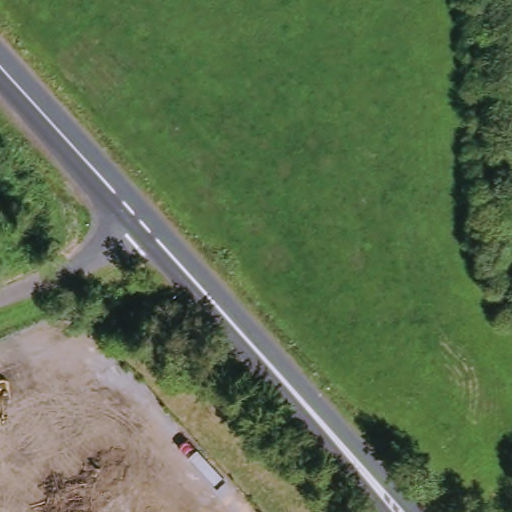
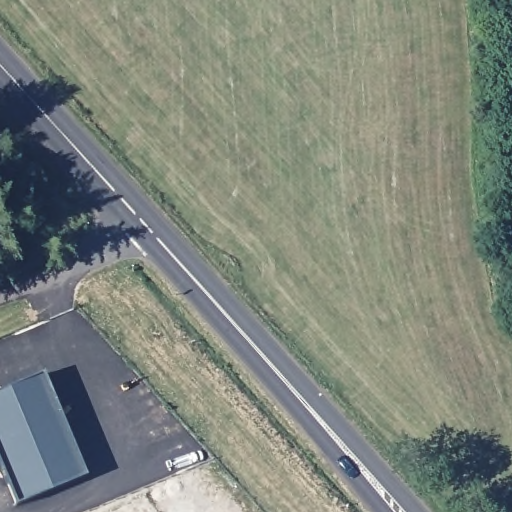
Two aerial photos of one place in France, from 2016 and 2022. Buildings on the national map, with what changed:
new [(15,507),(0,467),(0,386),(42,375),(86,477),(15,507)]

